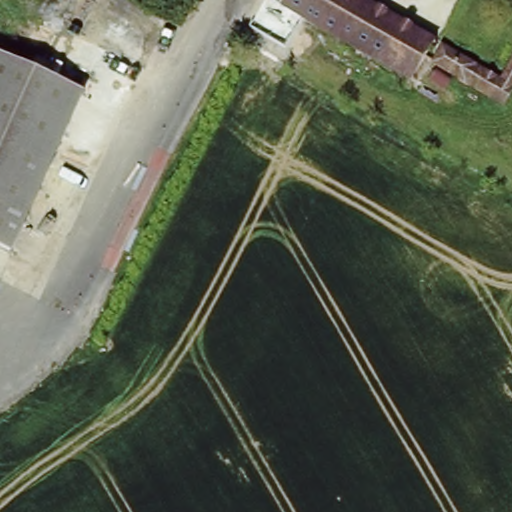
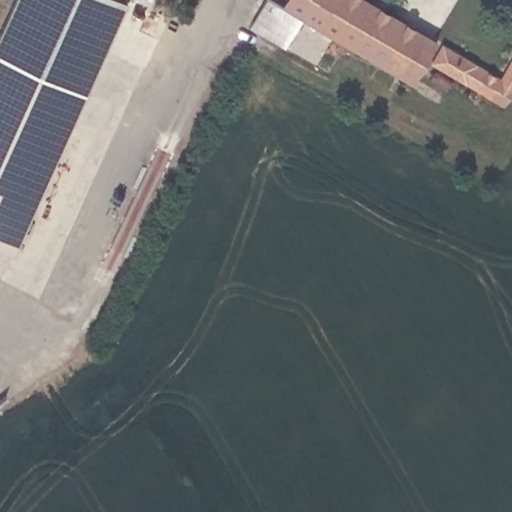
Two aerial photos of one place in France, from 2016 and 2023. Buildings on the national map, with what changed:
new [(87,90),(0,52),(0,33),(15,0),(129,0),(130,0),(90,91),(87,90)]
new [(269,0),(276,0),(285,5),(305,17),(289,49),(253,29),(269,0)]
unchanged [(415,80),(285,5),(288,0),(367,0),(437,40),(415,80)]
unchanged [(502,78),(512,61),(512,92),(505,104),(434,62),(445,44),(502,78)]
unchanged [(17,251),(0,244),(0,52),(87,90),(17,251)]

